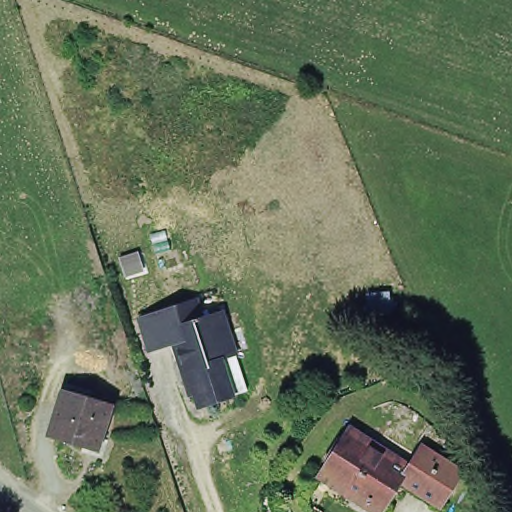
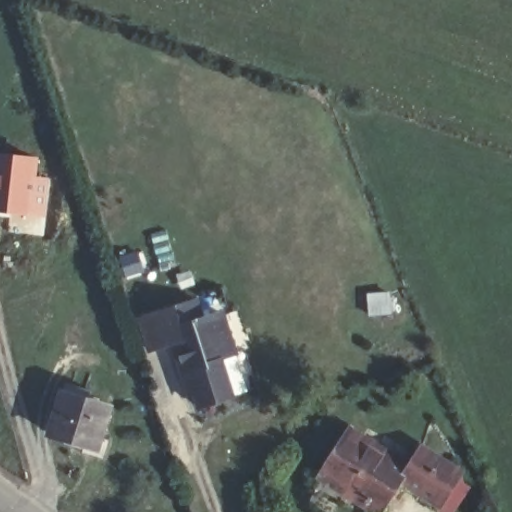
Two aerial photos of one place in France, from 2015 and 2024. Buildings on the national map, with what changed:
new [(34,179),(46,181),(41,235),(9,234),(10,218),(0,217),(0,156),(35,160),(35,168),(34,179)]
unchanged [(197,319),(216,313),(227,350),(213,355),(225,394),(193,403),(189,389),(184,391),(169,340),(143,347),(134,317),(190,299),(197,319)]
unchanged [(100,447),(54,431),(67,392),(112,407),(100,447)]
unchanged [(405,485),(388,512),(372,512),(355,501),(362,490),(334,471),(360,432),(399,458),(395,462),(412,474),(430,449),(452,464),(465,473),(442,507),(429,498),(427,500),(414,491),(405,485)]

